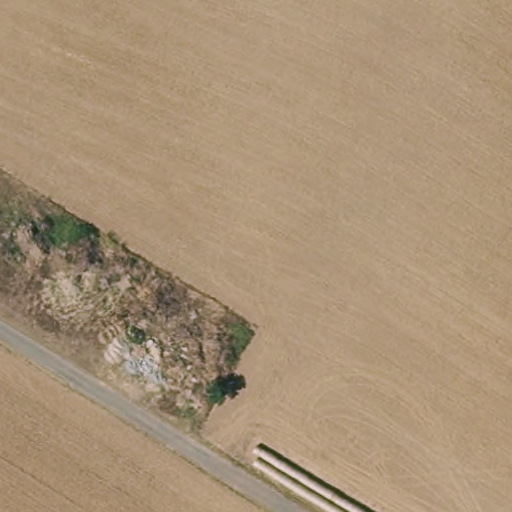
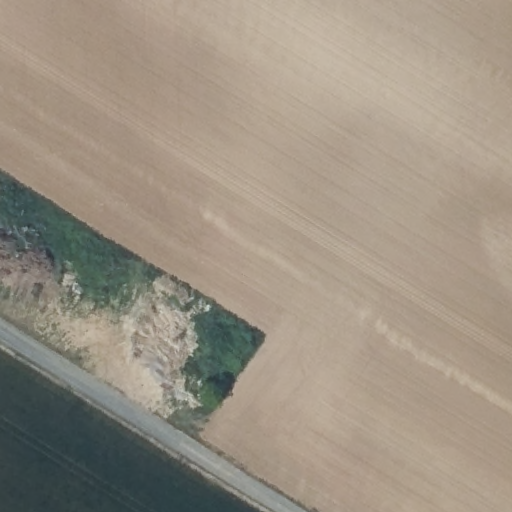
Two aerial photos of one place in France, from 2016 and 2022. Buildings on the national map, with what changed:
[]

